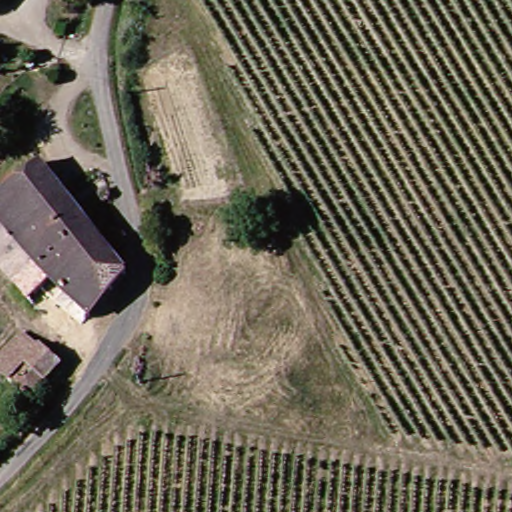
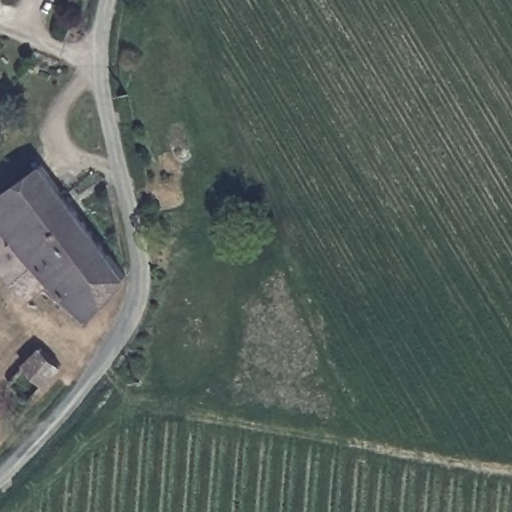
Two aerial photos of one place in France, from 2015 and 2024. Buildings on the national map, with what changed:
unchanged [(0,0),(5,0),(0,10),(0,0)]
unchanged [(102,306),(75,332),(0,259),(0,194),(39,167),(129,255),(89,293),(102,306)]
unchanged [(102,306),(89,293),(129,255),(143,267),(102,306)]
unchanged [(23,407),(0,387),(0,360),(27,332),(63,364),(23,407)]

